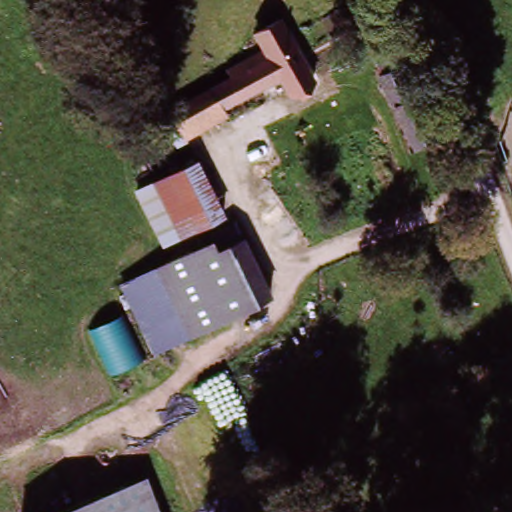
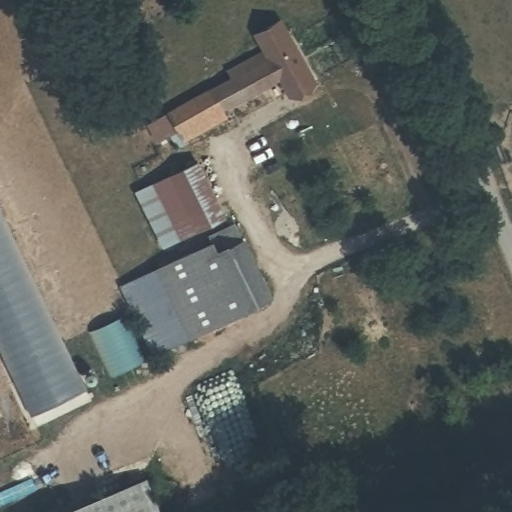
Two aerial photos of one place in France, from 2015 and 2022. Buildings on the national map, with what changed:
unchanged [(237,82),(227,64),(282,39),(290,56),(274,63),(237,82)]
unchanged [(397,54),(439,138),(417,149),(375,65),(397,54)]
unchanged [(286,89),(224,119),(212,96),(212,94),(237,82),(274,63),(286,89)]
unchanged [(227,125),(185,144),(180,135),(170,116),(212,96),(224,119),(227,125)]
unchanged [(230,221),(167,247),(135,192),(203,157),(230,221)]
new [(32,417),(0,350),(0,210),(87,391),(32,417)]
unchanged [(244,231),(275,293),(249,306),(218,244),(244,231)]
unchanged [(214,236),(218,244),(249,306),(217,321),(182,251),(214,236)]
unchanged [(215,331),(154,359),(121,289),(185,260),(215,331)]
unchanged [(151,476),(163,512),(58,512),(151,476)]

